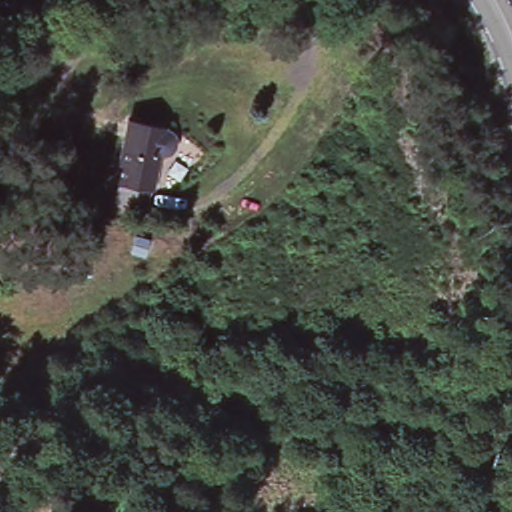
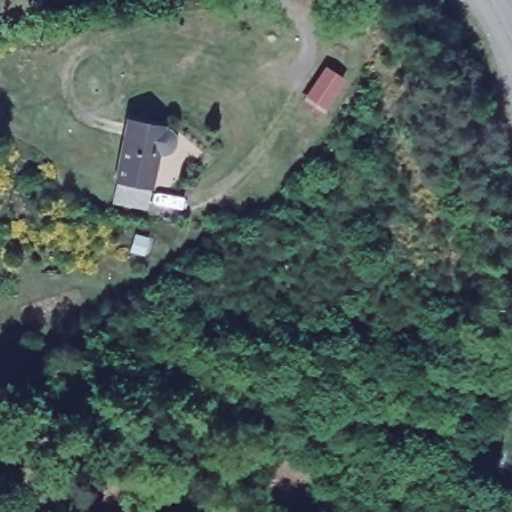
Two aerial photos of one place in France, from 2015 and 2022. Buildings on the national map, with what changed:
new [(346,79),(321,117),(300,105),(325,65),(346,79)]
unchanged [(115,194),(118,175),(111,173),(125,113),(164,122),(166,123),(168,124),(170,125),(171,127),(172,130),(172,131),(172,134),(172,135),(172,137),(171,140),(170,141),(168,143),(167,145),(165,145),(163,146),(160,146),(159,146),(152,180),(150,180),(147,199),(115,194)]

